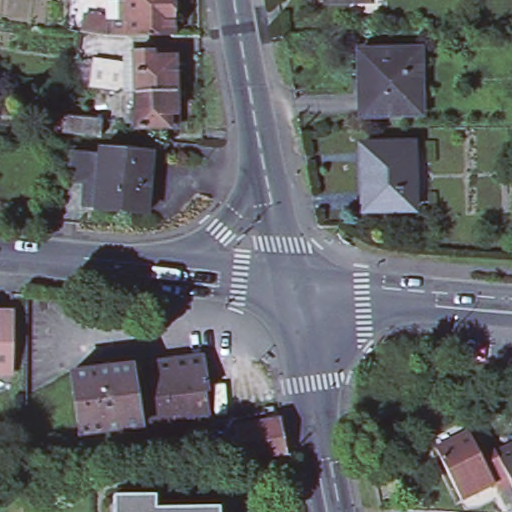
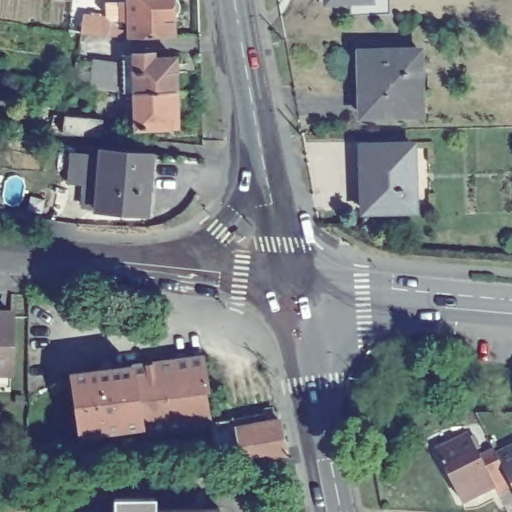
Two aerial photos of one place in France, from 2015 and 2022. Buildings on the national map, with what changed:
unchanged [(112,36),(111,36),(111,35),(100,34),(98,34),(87,32),(87,33),(85,32),(88,16),(111,19),(111,2),(125,2),(133,1),(133,0),(182,0),(183,3),(184,6),(184,9),(182,11),(181,13),(179,15),(179,35),(176,35),(133,36),(112,35),(112,36)]
unchanged [(322,4),(322,0),(374,0),(374,1),(322,4)]
unchanged [(422,52),(425,115),(366,118),(363,54),(422,52)]
unchanged [(184,96),(185,98),(185,100),(185,102),(185,104),(185,106),(184,108),(183,110),(181,109),(182,126),(135,128),(135,123),(127,123),(127,91),(122,91),(99,87),(82,85),(82,84),(82,62),(98,62),(98,61),(128,64),(129,64),(129,62),(133,57),(139,57),(140,53),(157,53),(157,58),(180,57),(180,74),(182,73),(183,81),(182,89),(180,89),(180,90),(181,94),(183,94),(184,96)]
unchanged [(101,136),(62,133),(51,132),(53,115),(65,116),(103,119),(101,136)]
unchanged [(414,143),(417,206),(367,209),(365,145),(414,143)]
unchanged [(73,182),(75,152),(105,154),(105,148),(157,153),(152,214),(100,210),(101,207),(88,206),(90,184),(73,182)]
unchanged [(10,314),(12,314),(11,374),(0,374),(0,313),(10,314)]
unchanged [(210,424),(142,436),(140,426),(142,426),(133,365),(204,356),(210,390),(207,391),(212,422),(212,424),(211,424),(210,424)]
unchanged [(80,434),(70,373),(133,365),(142,426),(140,426),(80,434)]
unchanged [(275,412),(277,417),(270,418),(270,413),(275,412)]
unchanged [(284,424),(291,460),(245,462),(240,432),(284,424)]
unchanged [(495,451),(510,480),(495,487),(491,479),(459,495),(434,445),(467,429),(478,452),(492,445),(495,451)]
unchanged [(234,436),(238,462),(222,463),(217,439),(234,436)]
unchanged [(25,469),(26,449),(48,443),(53,463),(25,469)]
unchanged [(495,451),(512,443),(512,485),(510,480),(495,451)]
unchanged [(142,496),(155,495),(155,508),(220,507),(220,512),(114,512),(113,496),(142,496)]

